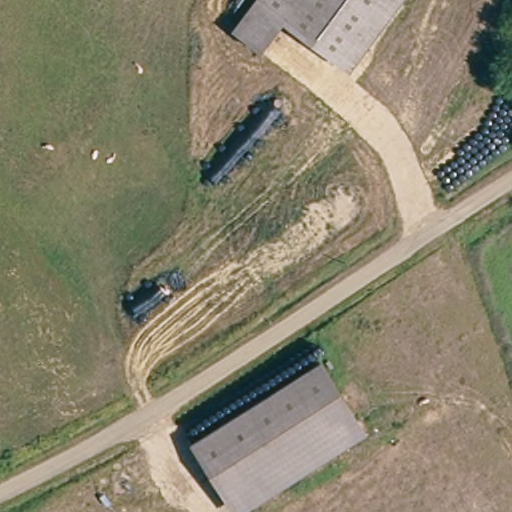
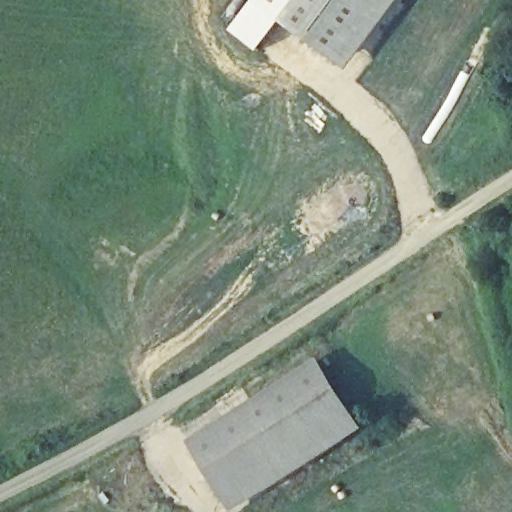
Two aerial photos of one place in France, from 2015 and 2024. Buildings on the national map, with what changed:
unchanged [(288,19),(266,49),(238,30),(260,0),(387,0),(344,59),(288,19)]
unchanged [(246,512),(200,446),(323,362),(372,427),(251,512),(246,512)]

